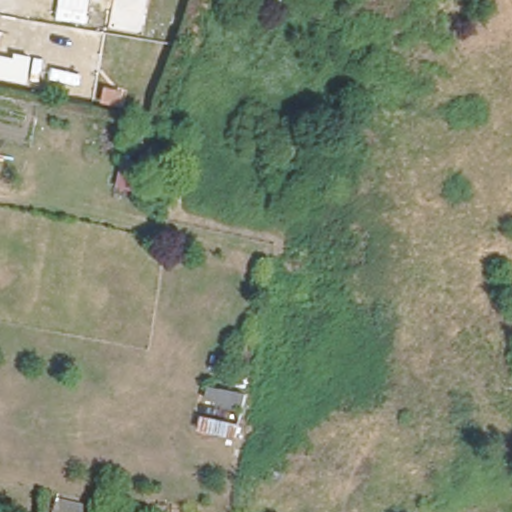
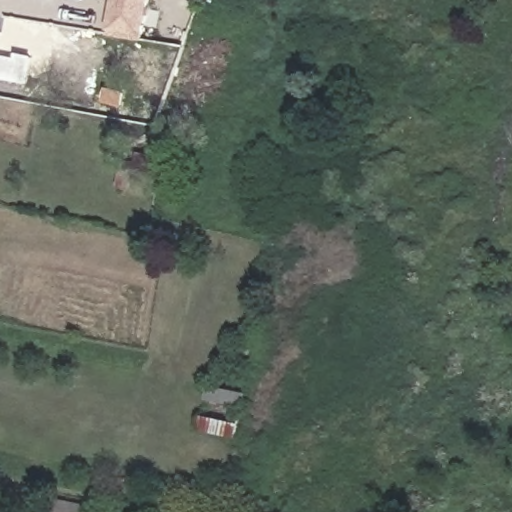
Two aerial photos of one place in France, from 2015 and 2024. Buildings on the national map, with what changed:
new [(107,30),(112,0),(147,0),(141,36),(107,30)]
unchanged [(72,508),(92,512),(71,512),(72,508)]

